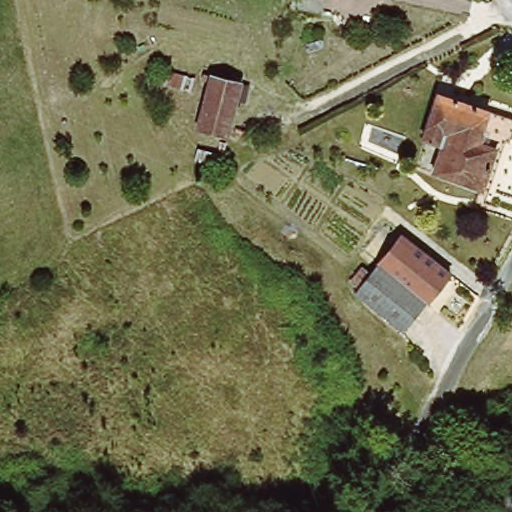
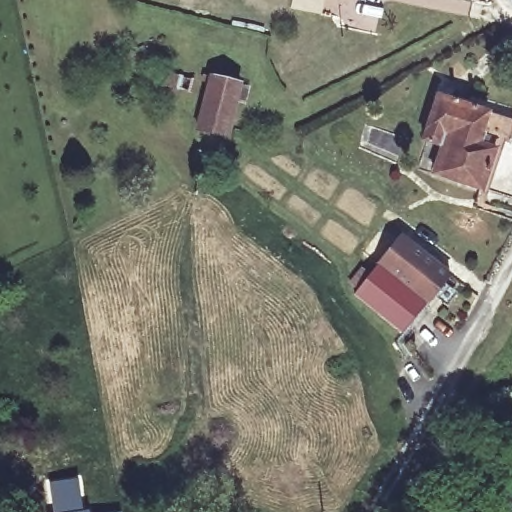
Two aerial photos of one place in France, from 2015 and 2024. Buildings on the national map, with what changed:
unchanged [(314,6),(290,1),(290,0),(322,0),(320,7),(314,6)]
unchanged [(168,76),(192,82),(188,93),(165,85),(168,76)]
unchanged [(230,138),(199,129),(214,77),(243,86),(230,138)]
unchanged [(450,135),(433,129),(445,95),(512,116),(512,140),(506,138),(488,190),(437,174),(450,135)]
unchanged [(372,275),(405,235),(455,274),(422,313),(372,275)]
unchanged [(422,313),(407,332),(357,291),(352,288),(366,270),(372,275),(422,313)]
new [(50,481),(79,476),(83,508),(90,507),(91,512),(53,512),(50,481)]
new [(122,510),(122,512),(110,512),(122,510)]

